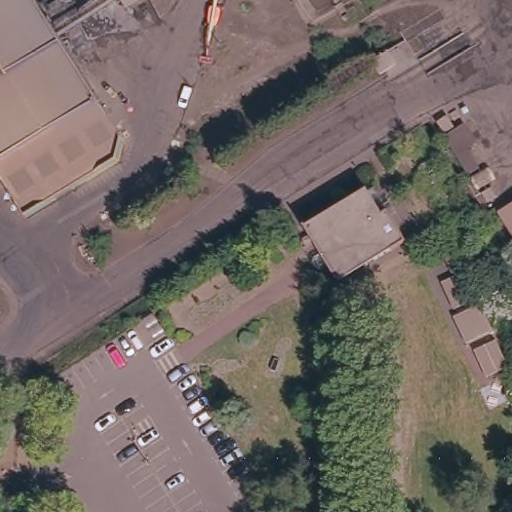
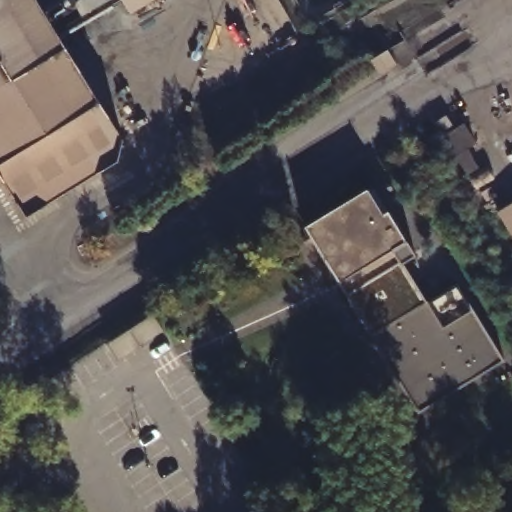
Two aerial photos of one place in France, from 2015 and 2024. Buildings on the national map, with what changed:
unchanged [(107,178),(19,231),(0,198),(0,0),(25,0),(115,156),(107,178)]
unchanged [(123,0),(163,0),(132,16),(123,0)]
unchanged [(473,146),(468,151),(480,170),(461,180),(438,142),(465,124),(473,146)]
unchanged [(372,189),(402,244),(341,278),(311,222),(372,189)]
unchanged [(512,249),(492,213),(512,202),(512,249)]
demolished [(493,331),(459,346),(445,315),(460,309),(435,248),(445,240),(493,331)]
new [(410,256),(403,261),(428,301),(456,284),(501,360),(420,410),(341,278),(402,244),(410,256)]

